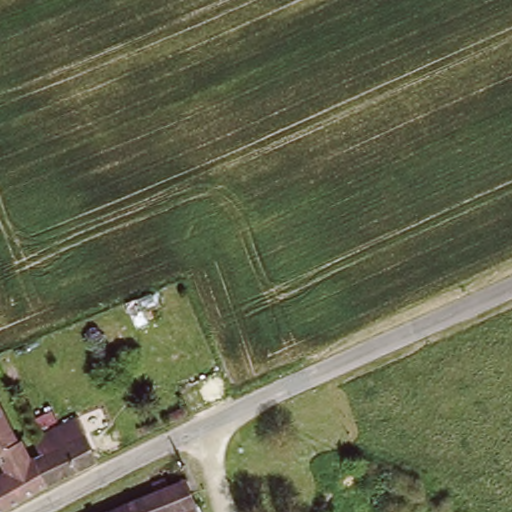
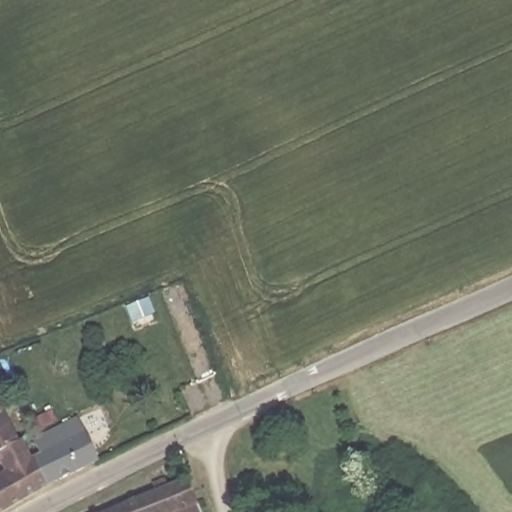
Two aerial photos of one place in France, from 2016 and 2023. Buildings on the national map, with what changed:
unchanged [(7,473),(0,461),(0,396),(32,462),(38,460),(50,485),(7,512),(0,512),(0,478),(7,473)]
unchanged [(38,460),(46,455),(40,441),(74,425),(80,439),(88,435),(98,455),(101,462),(50,485),(38,460)]
unchanged [(203,507),(192,512),(119,512),(192,482),(203,507)]
unchanged [(205,512),(192,512),(203,507),(205,512)]

